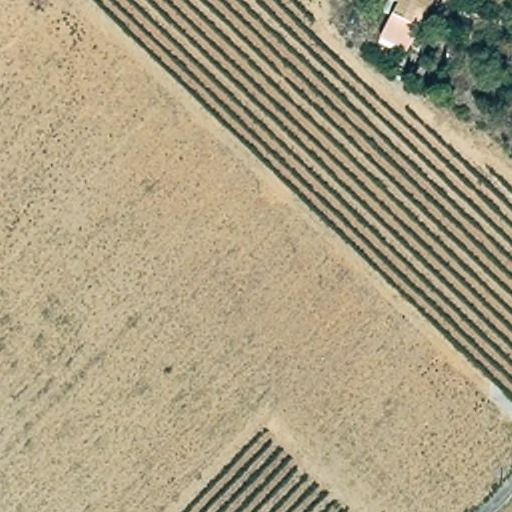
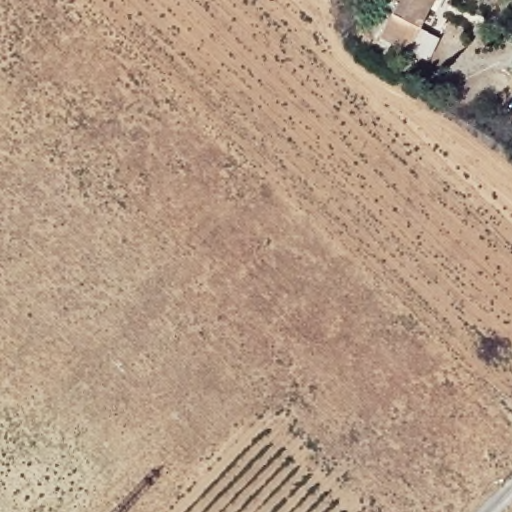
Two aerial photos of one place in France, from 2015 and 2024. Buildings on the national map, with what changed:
unchanged [(391,10),(382,5),(385,0),(429,0),(405,48),(379,34),(391,10)]

